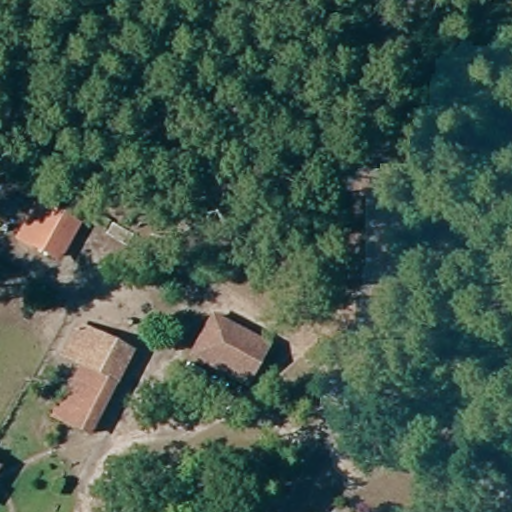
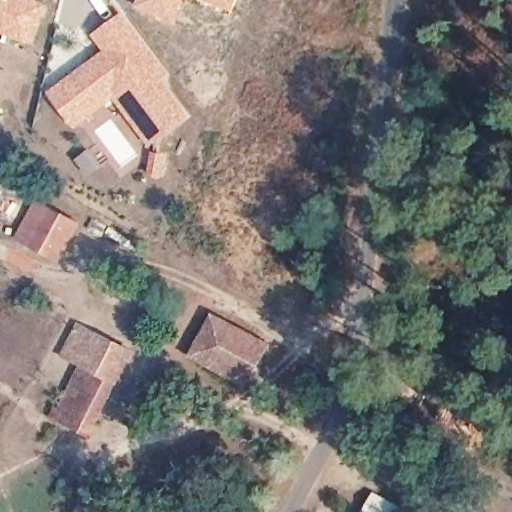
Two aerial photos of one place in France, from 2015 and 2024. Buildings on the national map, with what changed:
new [(38,0),(47,4),(30,46),(0,33),(0,0),(38,0)]
new [(183,0),(172,26),(134,8),(137,0),(183,0)]
new [(198,0),(236,0),(230,13),(198,0)]
new [(100,50),(90,35),(121,10),(170,73),(169,74),(169,86),(190,116),(164,136),(130,91),(72,130),(45,91),(100,50)]
unchanged [(60,260),(20,240),(41,202),(79,223),(60,260)]
unchanged [(160,276),(146,312),(128,305),(143,270),(160,276)]
unchanged [(190,357),(211,317),(266,347),(245,386),(190,357)]
unchanged [(115,389),(63,361),(77,330),(130,358),(115,389)]
unchanged [(55,425),(80,377),(113,394),(89,443),(62,428),(55,425)]

